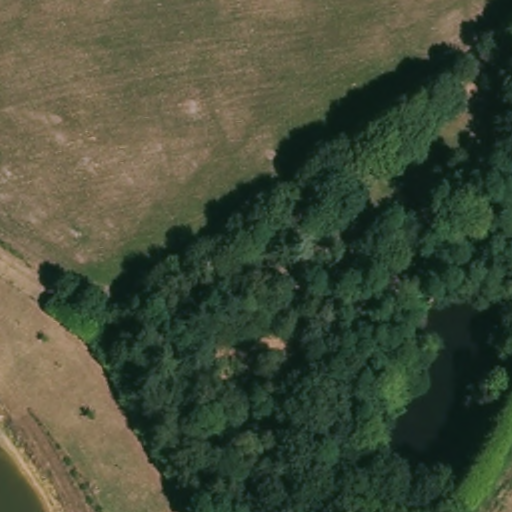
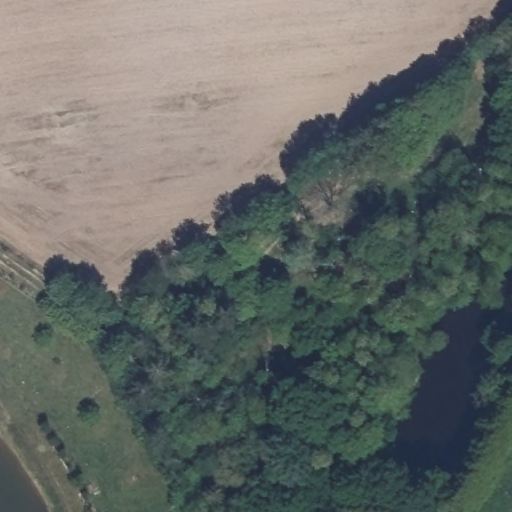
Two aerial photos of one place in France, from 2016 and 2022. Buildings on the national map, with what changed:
unchanged [(389,292),(375,272),(402,251),(417,272),(389,292)]

